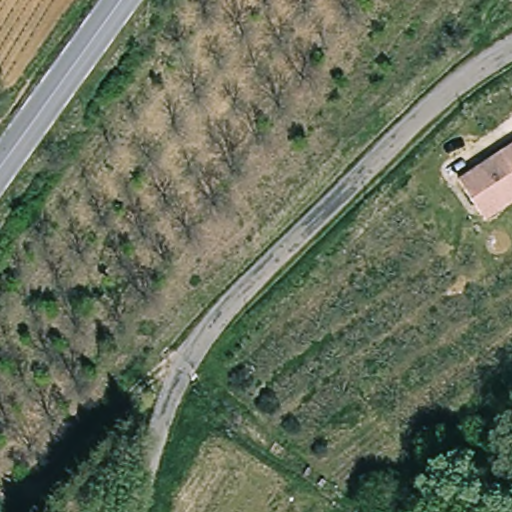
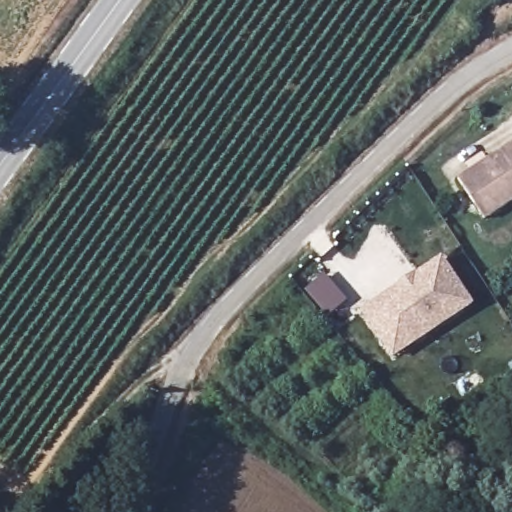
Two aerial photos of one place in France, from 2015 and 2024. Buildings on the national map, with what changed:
unchanged [(508,151),(512,149),(512,159),(508,151)]
unchanged [(480,199),(466,174),(508,151),(512,159),(512,200),(503,205),(487,213),(480,199)]
new [(398,286),(397,284),(416,272),(417,274),(442,256),(475,304),(394,359),(360,310),(398,286)]

